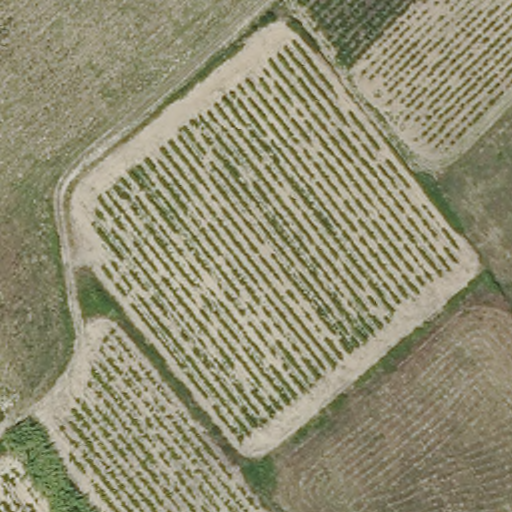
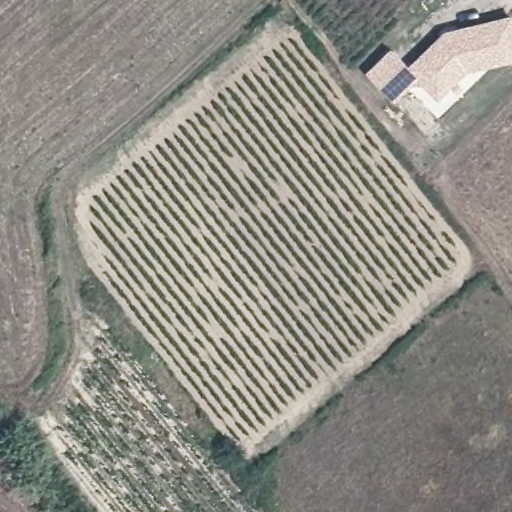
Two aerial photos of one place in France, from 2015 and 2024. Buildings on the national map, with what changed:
new [(512,14),(512,62),(468,73),(461,79),(437,101),(417,78),(407,66),(445,30),(512,14)]
new [(391,49),(407,66),(417,78),(392,100),(365,72),(391,49)]

